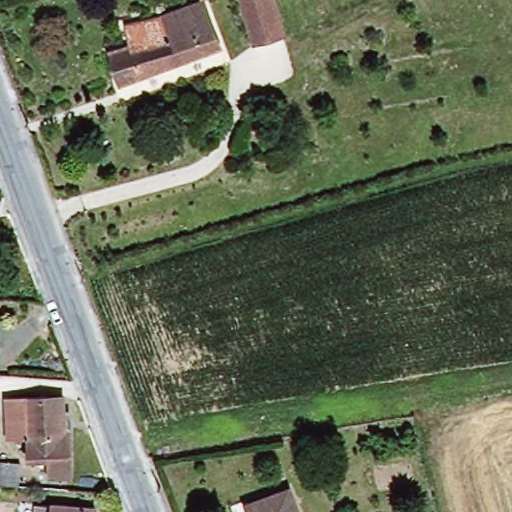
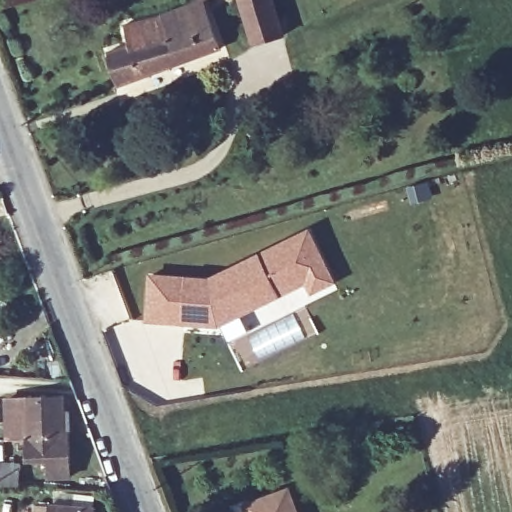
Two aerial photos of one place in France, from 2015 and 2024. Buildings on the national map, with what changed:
unchanged [(288,34),(246,46),(241,33),(251,28),(242,0),(277,0),(288,34)]
unchanged [(119,88),(106,55),(131,45),(124,29),(204,3),(221,47),(119,88)]
new [(152,277),(211,280),(310,231),(335,282),(314,291),(309,281),(220,325),(149,321),(152,277)]
unchanged [(60,434),(65,433),(66,478),(48,478),(48,462),(26,461),(24,399),(59,399),(60,434)]
unchanged [(19,486),(0,485),(0,467),(21,468),(19,486)]
unchanged [(248,512),(247,508),(291,494),(297,512),(248,512)]
unchanged [(99,512),(45,512),(46,509),(59,510),(59,504),(100,508),(99,512)]

